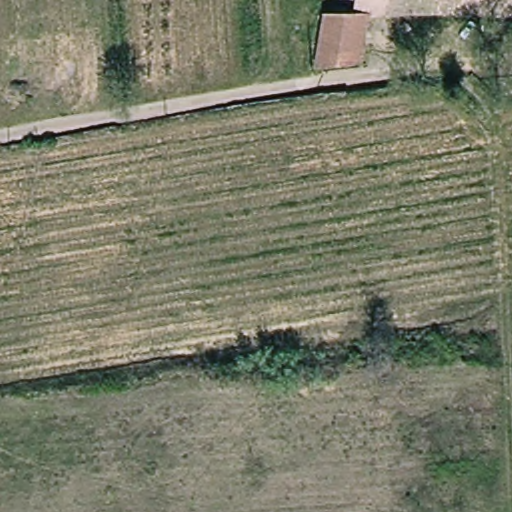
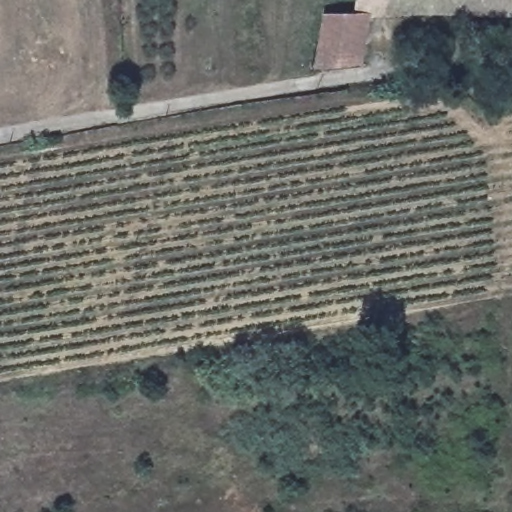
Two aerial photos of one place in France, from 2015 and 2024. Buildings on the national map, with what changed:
unchanged [(510,16),(431,16),(369,18),(358,16),(360,0),(512,0),(512,16),(510,16)]
unchanged [(370,16),(369,18),(361,69),(321,69),(330,16),(358,16),(370,16)]

